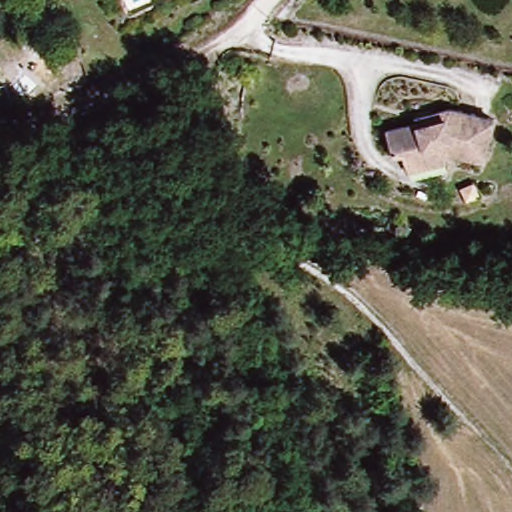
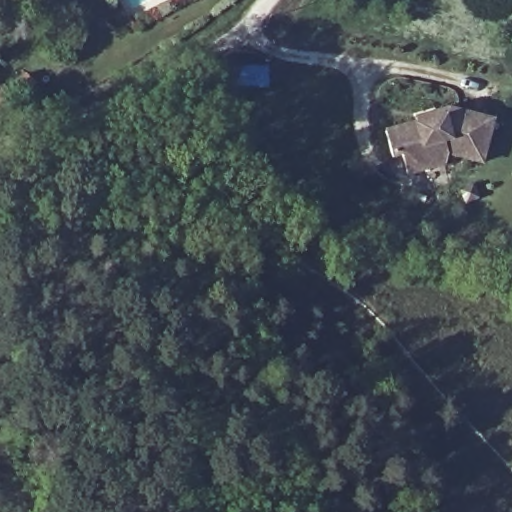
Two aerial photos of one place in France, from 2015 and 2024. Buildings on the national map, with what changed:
unchanged [(445,162),(409,172),(403,154),(394,156),(387,130),(442,117),(443,109),(451,107),(492,117),(482,159),(448,152),(445,162)]

